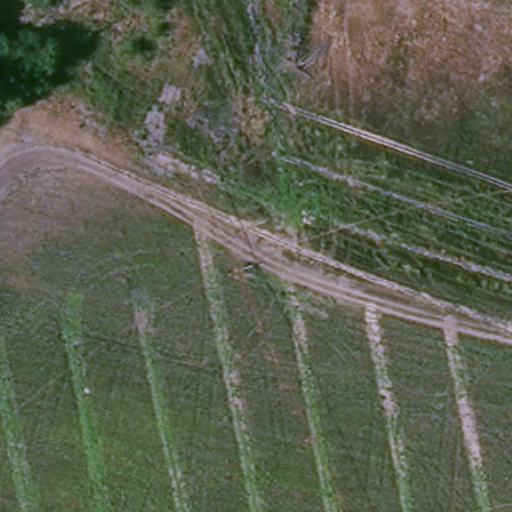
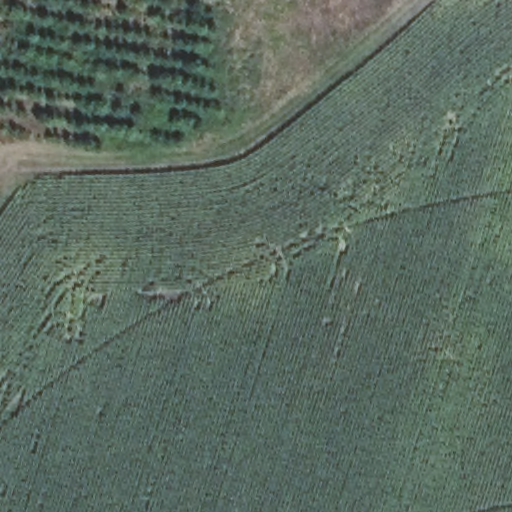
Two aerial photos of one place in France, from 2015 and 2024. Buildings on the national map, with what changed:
[]

